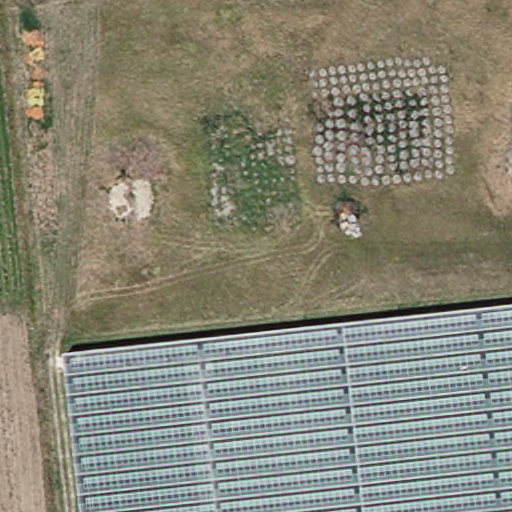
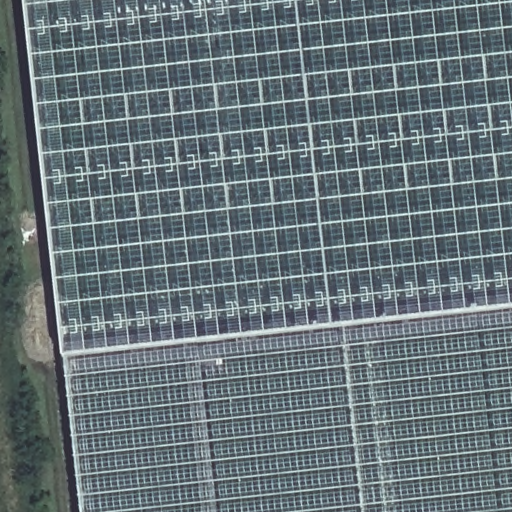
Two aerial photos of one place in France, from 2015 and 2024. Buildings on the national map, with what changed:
new [(67,362),(23,0),(512,0),(512,311),(67,362)]
unchanged [(67,362),(512,311),(512,512),(84,512),(67,362)]

